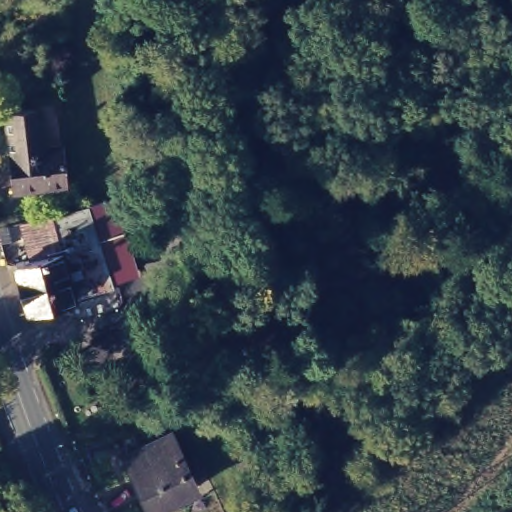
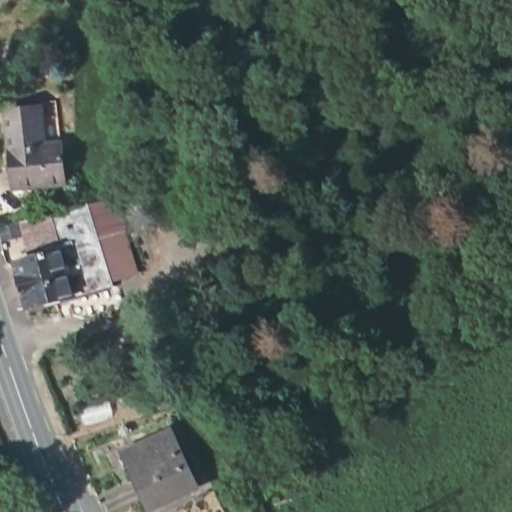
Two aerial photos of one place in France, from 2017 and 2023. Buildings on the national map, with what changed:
unchanged [(45,111),(48,146),(64,145),(68,185),(17,190),(10,114),(45,111)]
unchanged [(112,281),(27,306),(13,259),(30,255),(19,217),(67,205),(66,197),(81,193),(83,202),(87,201),(115,195),(120,209),(132,206),(136,223),(124,226),(125,229),(137,273),(112,281)]
unchanged [(177,425),(202,479),(160,500),(135,445),(177,425)]

